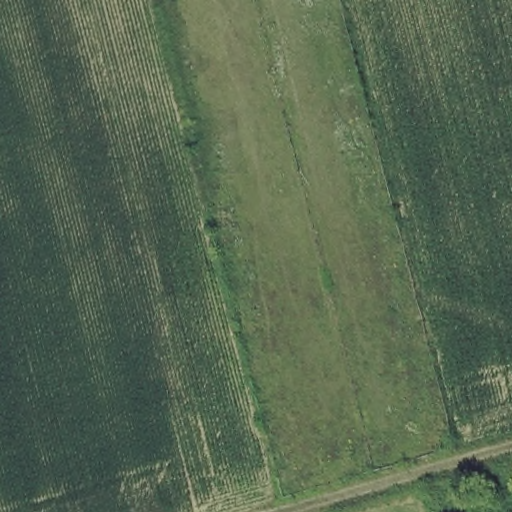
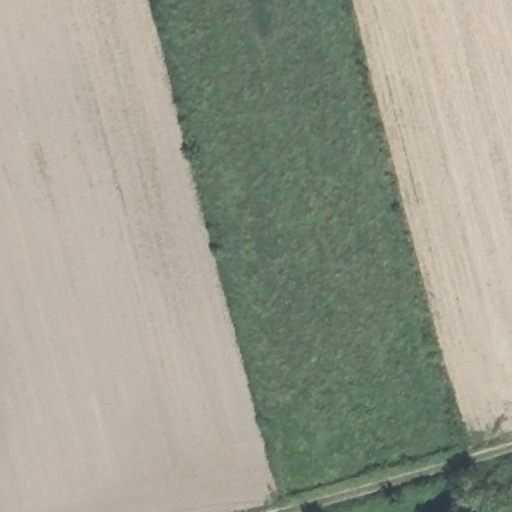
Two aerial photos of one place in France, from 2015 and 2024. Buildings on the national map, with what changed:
[]

